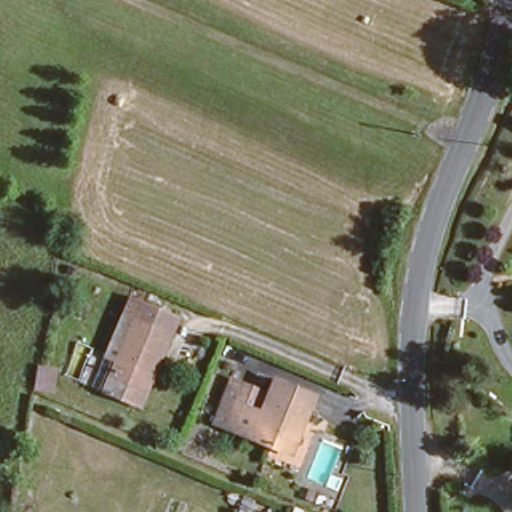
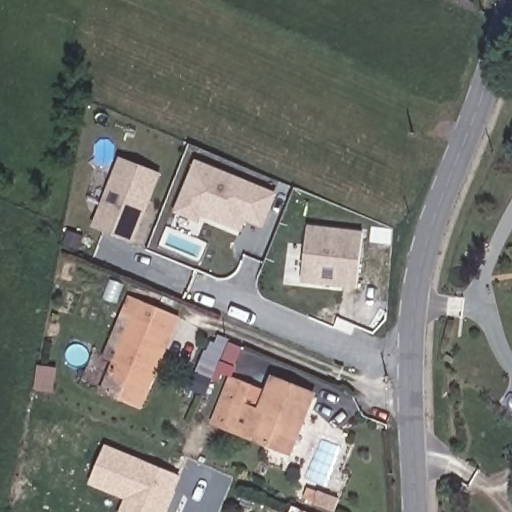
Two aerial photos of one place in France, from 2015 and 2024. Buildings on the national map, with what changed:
new [(119,157),(157,173),(130,240),(91,224),(119,157)]
new [(195,162),(271,194),(259,224),(242,217),(237,227),(199,210),(195,217),(175,210),(195,162)]
new [(305,226),(360,232),(353,287),(298,280),(305,226)]
unchanged [(180,312),(172,329),(170,328),(145,387),(135,383),(129,397),(106,387),(119,358),(109,353),(135,292),(180,312)]
unchanged [(219,418),(237,375),(273,390),(279,375),(320,392),(307,422),(295,450),(276,442),(219,418)]
new [(181,476),(165,512),(119,512),(124,500),(88,483),(105,444),(181,476)]
unchanged [(288,510),(293,512),(287,512),(288,510)]

